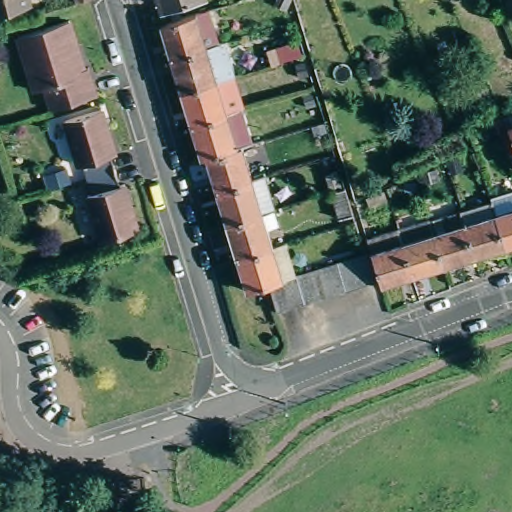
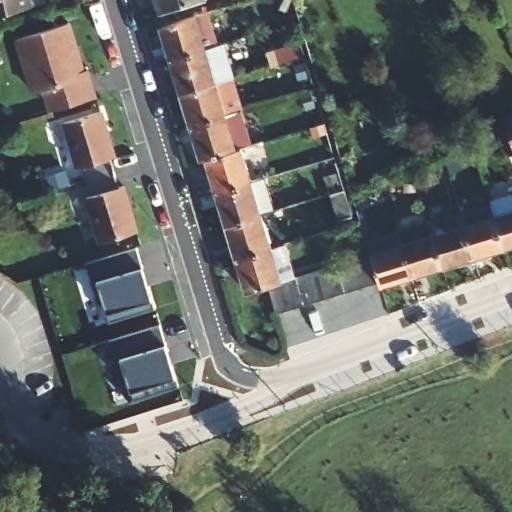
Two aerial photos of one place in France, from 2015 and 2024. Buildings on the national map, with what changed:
unchanged [(0,12),(0,0),(31,0),(32,5),(0,12)]
unchanged [(72,0),(84,0),(73,4),(72,0)]
unchanged [(157,0),(191,0),(160,9),(157,0)]
unchanged [(157,30),(205,15),(215,50),(167,65),(157,30)]
unchanged [(40,87),(27,92),(11,40),(64,23),(78,70),(86,68),(92,96),(47,110),(40,87)]
unchanged [(267,66),(262,54),(294,45),(297,56),(267,66)]
unchanged [(212,87),(177,98),(167,65),(215,50),(220,49),(231,82),(226,84),(212,87)]
unchanged [(235,117),(223,120),(187,131),(177,98),(212,87),(226,84),(235,117)]
unchanged [(83,180),(79,166),(72,168),(59,123),(97,112),(112,157),(106,159),(110,172),(83,180)]
unchanged [(507,121),(512,119),(512,134),(507,121)]
unchanged [(223,120),(233,154),(202,164),(197,165),(187,131),(223,120)]
unchanged [(502,136),(479,146),(474,134),(498,125),(502,136)]
unchanged [(251,149),(259,176),(248,179),(250,185),(212,197),(202,164),(233,154),(251,149)]
unchanged [(110,172),(114,187),(120,186),(132,231),(96,242),(82,196),(87,195),(83,180),(110,172)]
unchanged [(250,185),(252,192),(266,188),(274,215),(260,220),(248,223),(223,230),(212,197),(250,185)]
unchanged [(337,191),(342,190),(350,216),(333,221),(325,195),(337,191)]
unchanged [(489,207),(488,206),(512,199),(512,250),(502,254),(489,207)]
unchanged [(502,254),(472,262),(462,230),(458,217),(489,207),(502,254)]
unchanged [(440,272),(431,239),(427,227),(458,217),(462,230),(472,262),(440,272)]
unchanged [(270,252),(242,260),(234,263),(223,230),(248,223),(260,220),(270,252)]
unchanged [(399,247),(396,239),(395,234),(394,232),(426,223),(427,227),(431,239),(440,272),(409,281),(399,247)]
unchanged [(369,257),(366,248),(396,239),(399,247),(409,281),(379,290),(369,257)]
unchanged [(322,271),(337,266),(351,262),(362,259),(371,287),(360,291),(347,295),(332,300),(317,305),(302,309),(289,313),(275,317),(266,289),(244,295),(234,263),(242,260),(270,252),(277,250),(284,248),(294,280),(307,276),(322,271)]
new [(86,266),(137,250),(155,310),(106,323),(86,266)]
new [(177,388),(116,408),(97,346),(158,328),(177,388)]

